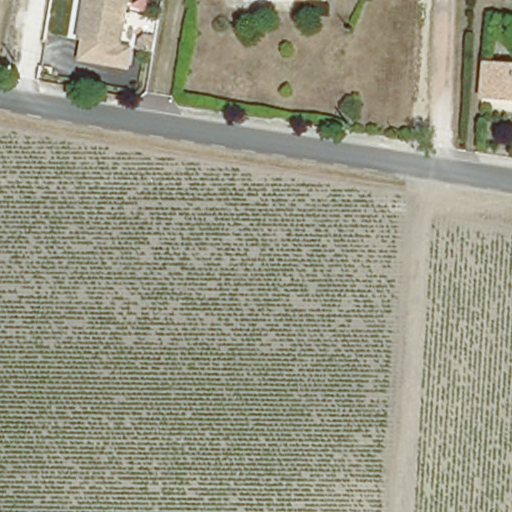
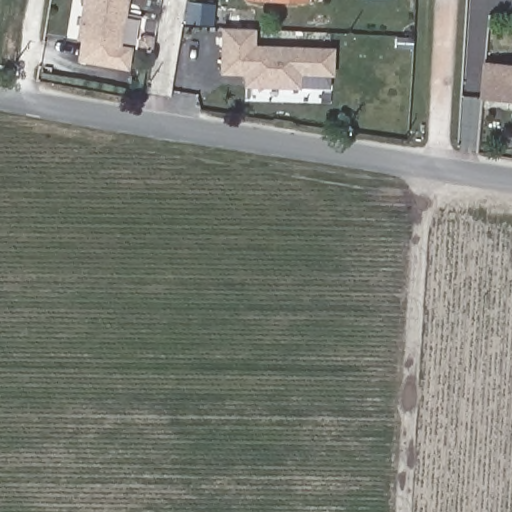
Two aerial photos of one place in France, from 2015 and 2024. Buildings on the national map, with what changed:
unchanged [(122,44),(80,37),(86,0),(130,0),(122,44)]
new [(226,28),(258,29),(257,47),(336,49),(336,75),(303,73),(303,87),(249,86),(250,74),(225,73),(226,28)]
unchanged [(152,46),(152,49),(138,47),(140,34),(154,37),(152,46)]
unchanged [(512,66),(512,99),(482,97),(485,64),(512,66)]

